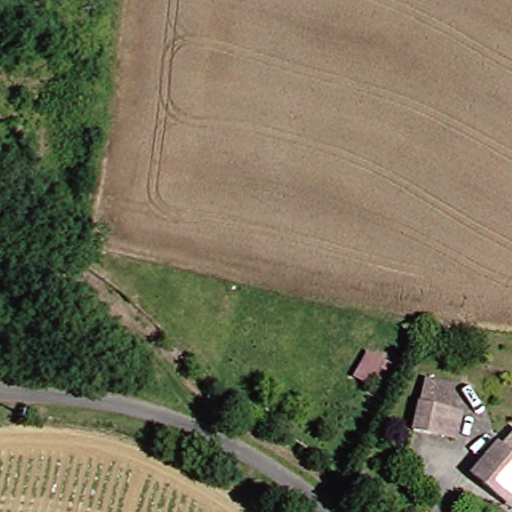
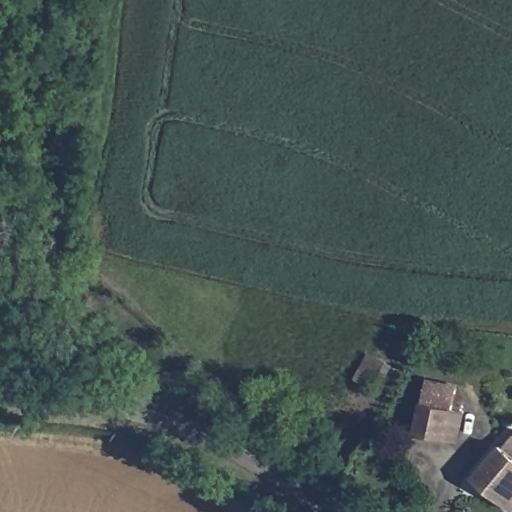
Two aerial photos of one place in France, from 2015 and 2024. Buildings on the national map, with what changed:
unchanged [(374,352),(398,369),(383,393),(359,377),(374,352)]
unchanged [(433,381),(462,386),(458,406),(472,408),(467,440),(419,430),(433,381)]
unchanged [(506,499),(481,478),(506,444),(512,449),(512,503),(506,499)]

